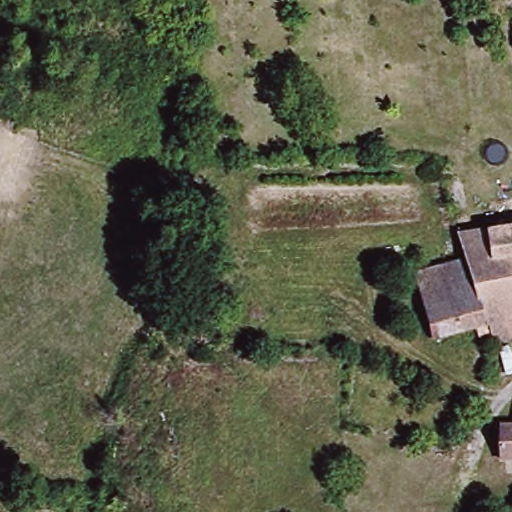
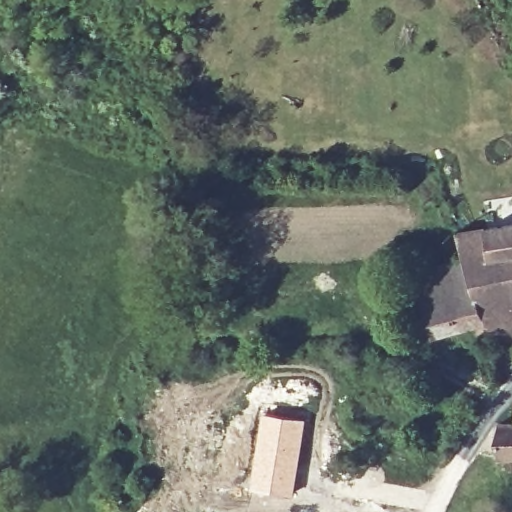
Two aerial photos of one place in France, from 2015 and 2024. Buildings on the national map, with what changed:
unchanged [(460,231),(512,218),(512,342),(492,347),(468,259),(460,231)]
unchanged [(492,347),(482,350),(476,329),(443,338),(425,272),(468,259),(492,347)]
new [(262,412),(307,418),(294,496),(250,488),(262,412)]
unchanged [(512,428),(512,461),(510,478),(468,473),(492,427),(512,428)]

